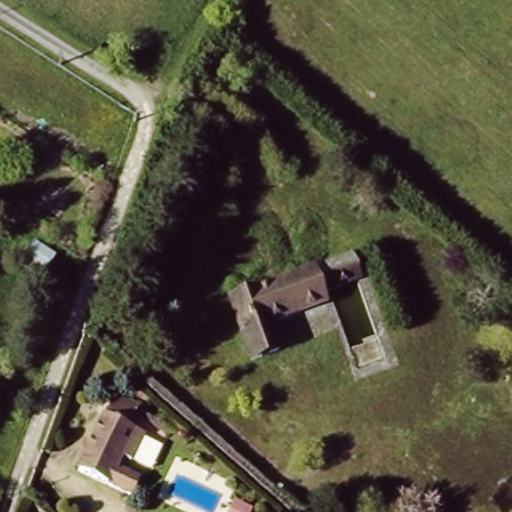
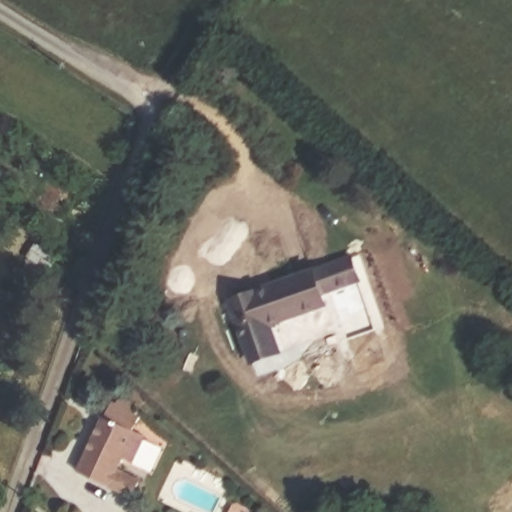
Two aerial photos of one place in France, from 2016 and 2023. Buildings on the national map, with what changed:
unchanged [(38,256),(47,242),(60,250),(52,265),(38,256)]
unchanged [(326,293),(318,296),(321,306),(270,323),(279,351),(252,360),(231,297),(351,258),(359,282),(356,283),(326,293)]
unchanged [(141,430),(128,465),(141,470),(131,499),(73,473),(101,415),(141,430)]
unchanged [(0,505),(0,501),(1,502),(0,505)]

